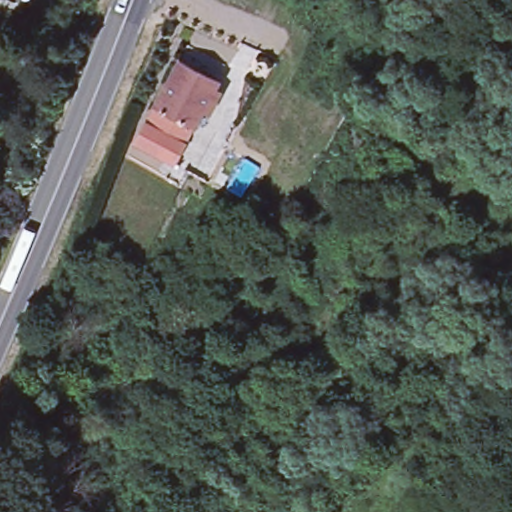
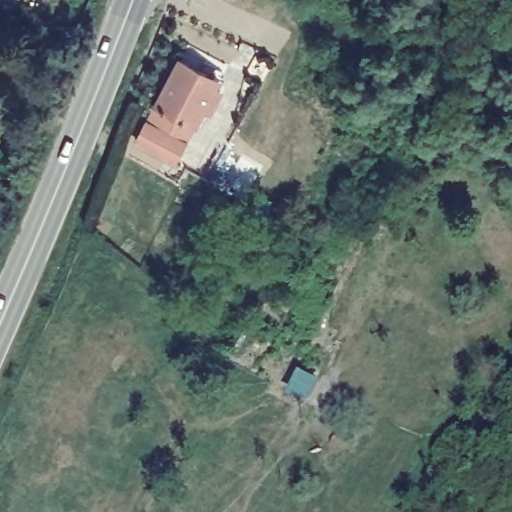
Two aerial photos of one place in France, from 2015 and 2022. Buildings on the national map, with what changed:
unchanged [(217,77),(214,85),(220,88),(210,106),(205,104),(195,120),(157,100),(179,57),(217,77)]
unchanged [(187,137),(175,160),(137,142),(149,119),(187,137)]

